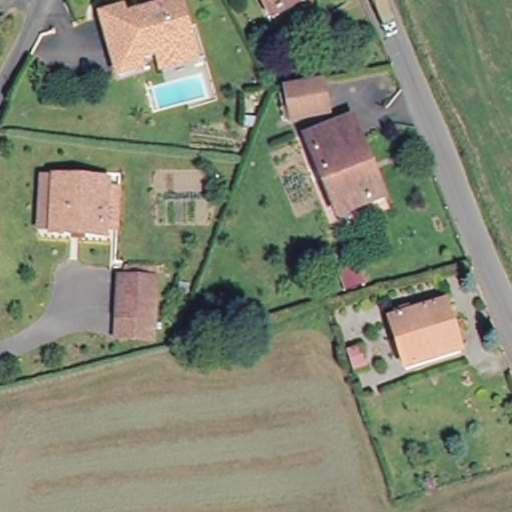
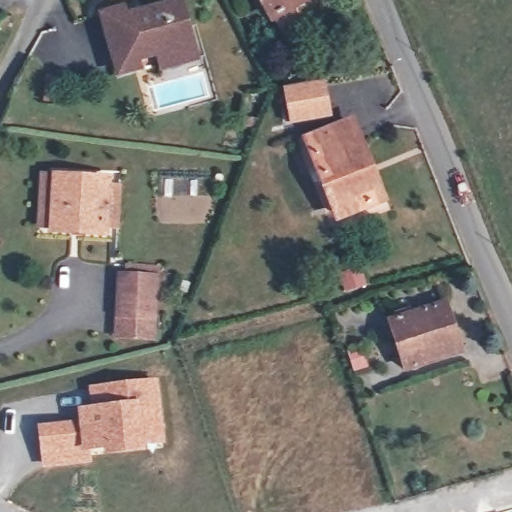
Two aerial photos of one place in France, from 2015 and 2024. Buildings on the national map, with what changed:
unchanged [(285,30),(274,9),(260,15),(252,0),(303,0),(307,8),(314,5),(318,14),(285,30)]
unchanged [(160,74),(157,61),(136,66),(139,78),(114,84),(100,24),(120,19),(123,29),(145,24),(144,19),(177,11),(188,53),(192,66),(160,74)]
unchanged [(272,29),(264,24),(269,18),(276,22),(272,29)]
unchanged [(283,88),(319,81),(323,114),(289,122),(283,88)]
unchanged [(350,142),(356,140),(382,200),(332,220),(301,144),(342,125),(350,142)]
unchanged [(105,231),(51,229),(54,176),(107,178),(105,231)]
unchanged [(160,328),(161,286),(118,285),(118,274),(172,275),(171,327),(160,328)]
unchanged [(111,284),(118,285),(161,286),(160,328),(110,326),(111,284)]
unchanged [(461,355),(405,374),(388,325),(445,305),(461,355)]
unchanged [(160,328),(159,348),(109,348),(110,326),(160,328)]
unchanged [(358,396),(347,355),(367,350),(381,385),(358,396)]
new [(145,445),(146,452),(104,458),(103,451),(91,452),(91,463),(42,469),(38,426),(78,420),(77,409),(90,407),(89,387),(159,379),(164,443),(145,445)]

